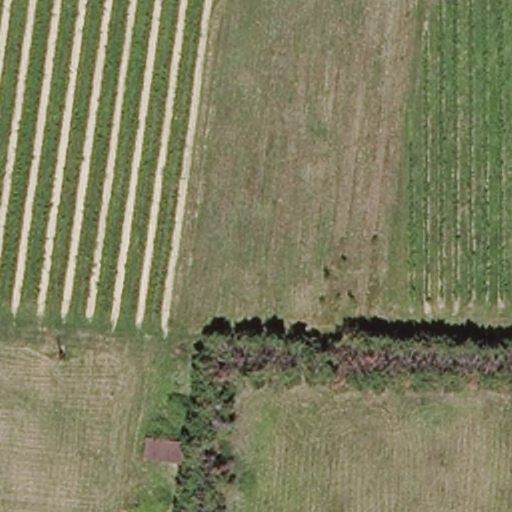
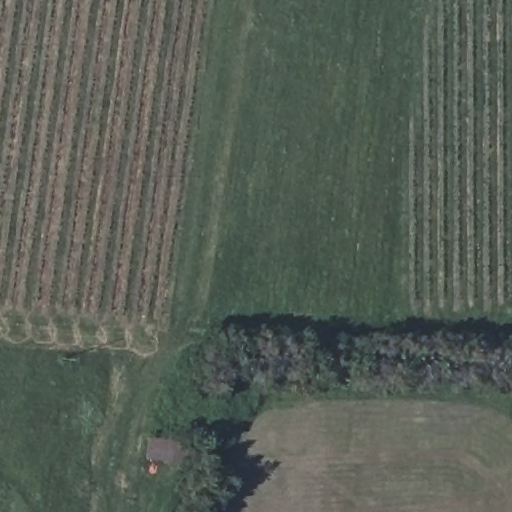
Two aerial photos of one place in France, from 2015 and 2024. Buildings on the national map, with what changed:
unchanged [(146,455),(148,436),(189,441),(187,460),(146,455)]

